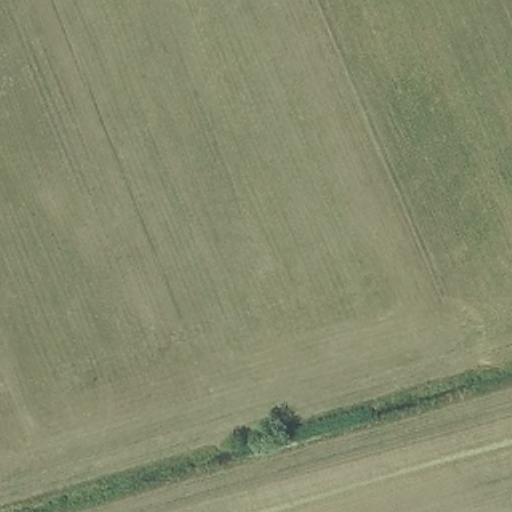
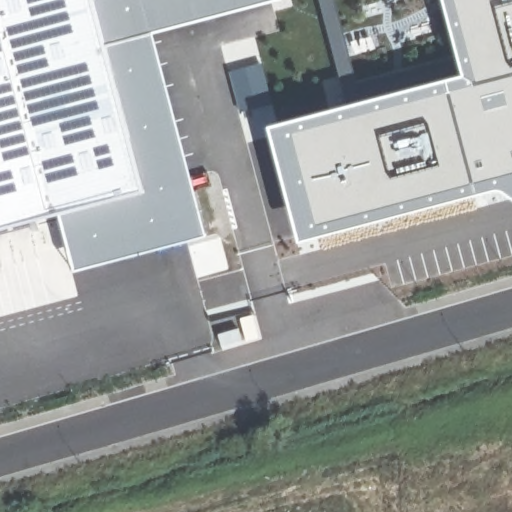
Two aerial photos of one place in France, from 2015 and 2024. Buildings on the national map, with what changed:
new [(161,35),(211,240),(78,272),(64,223),(0,238),(0,0),(290,0),(291,1),(161,35)]
new [(507,185),(304,245),(271,124),(467,75),(448,0),(512,0),(512,188),(507,185)]

